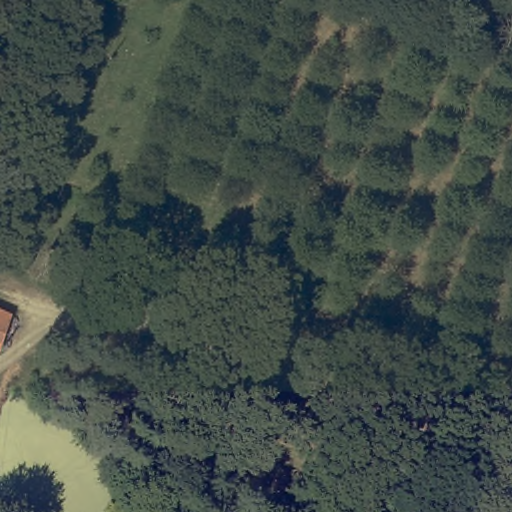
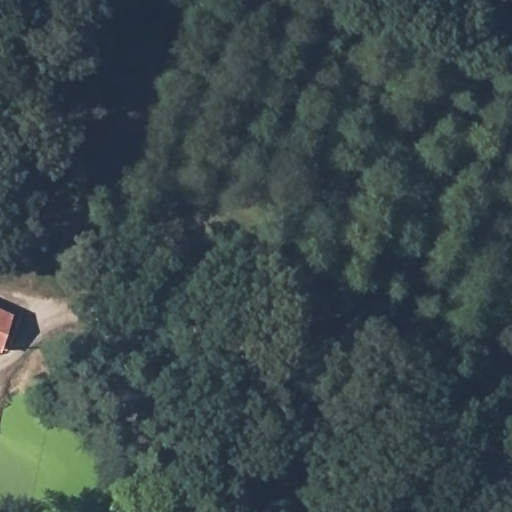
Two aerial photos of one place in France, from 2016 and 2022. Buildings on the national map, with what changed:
unchanged [(0,350),(0,309),(13,315),(1,350),(0,350)]

